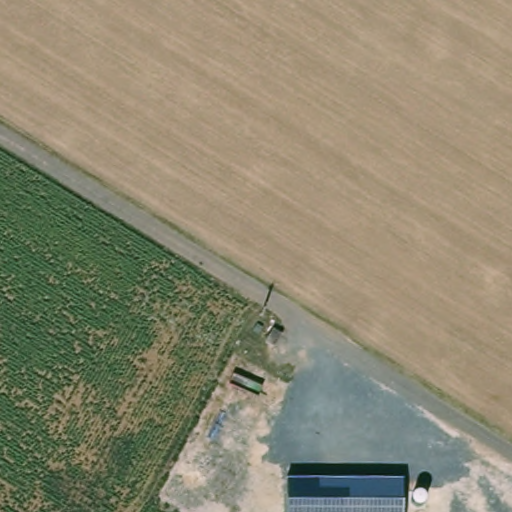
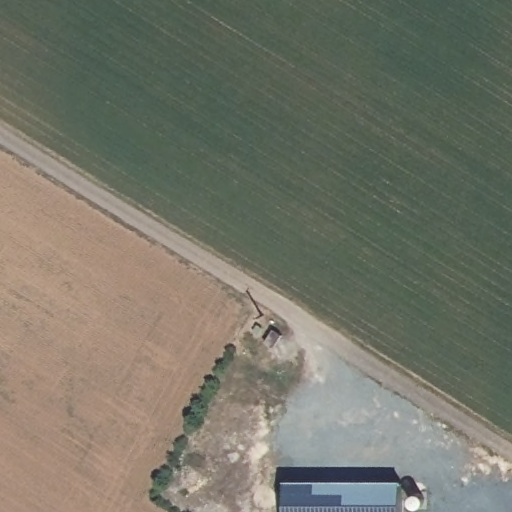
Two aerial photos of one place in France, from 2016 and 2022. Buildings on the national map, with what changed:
unchanged [(283,485),(400,486),(401,512),(284,512),(283,485)]

